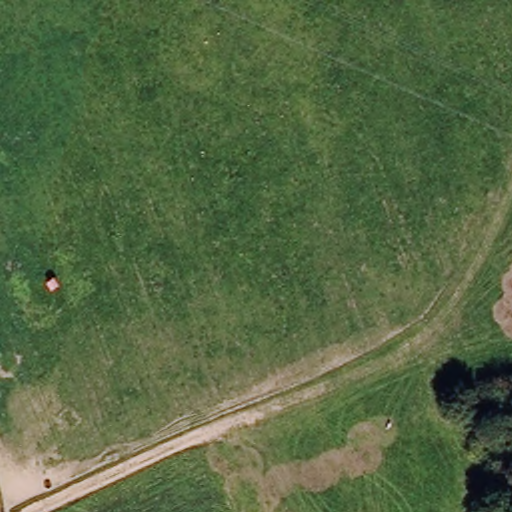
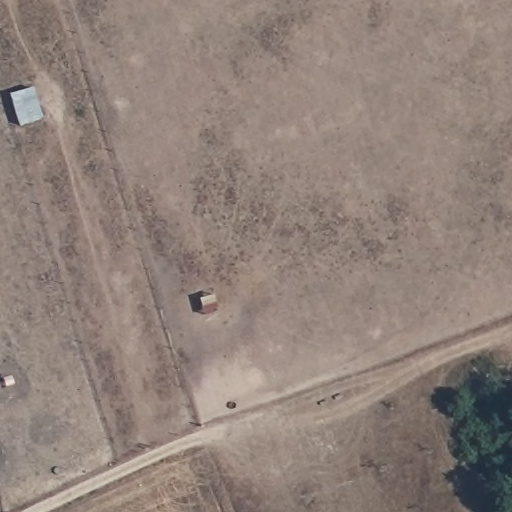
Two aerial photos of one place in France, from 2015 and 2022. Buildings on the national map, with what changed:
[]

